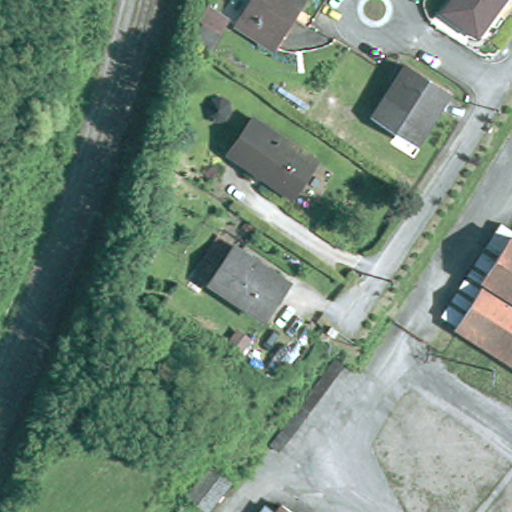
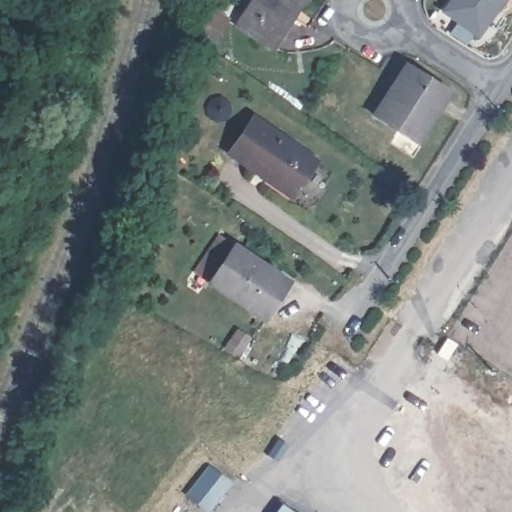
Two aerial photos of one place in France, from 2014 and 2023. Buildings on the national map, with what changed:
unchanged [(301,0),(272,45),(238,24),(254,0),(301,0)]
unchanged [(502,0),(478,33),(445,10),(452,0),(502,0)]
unchanged [(407,65),(449,91),(418,140),(376,115),(407,65)]
unchanged [(258,171),(229,151),(251,120),(254,116),(283,136),(318,160),(296,192),(293,195),(258,171)]
demolished [(488,280),(484,278),(512,235),(512,361),(459,326),(488,280)]
unchanged [(146,236),(159,243),(150,261),(137,255),(146,236)]
unchanged [(294,285),(271,322),(216,285),(202,275),(226,241),(239,250),(241,249),(294,285)]
unchanged [(129,290),(118,285),(126,267),(138,272),(129,290)]
unchanged [(339,330),(334,336),(328,331),(332,325),(339,330)]
unchanged [(269,443),(271,444),(336,358),(346,365),(279,450),(261,473),(251,466),(269,443)]
unchanged [(231,482),(209,510),(189,493),(211,466),(231,482)]
unchanged [(268,502),(279,510),(284,504),(294,512),(261,512),(268,502)]
unchanged [(183,506),(190,512),(179,512),(183,506)]

